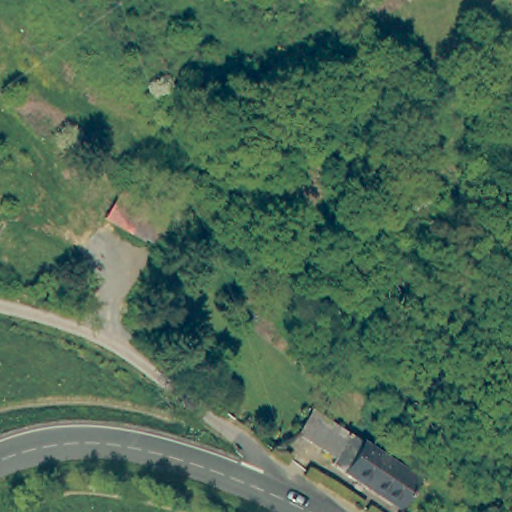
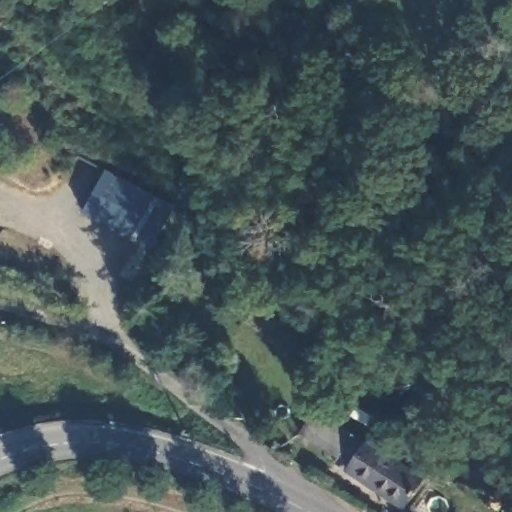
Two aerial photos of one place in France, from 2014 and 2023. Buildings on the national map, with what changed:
new [(152,249),(82,214),(105,169),(176,204),(152,249)]
unchanged [(336,459),(354,432),(387,453),(367,482),(336,459)]
unchanged [(367,482),(387,453),(420,477),(399,506),(367,482)]
unchanged [(408,510),(411,512),(407,512),(408,510)]

